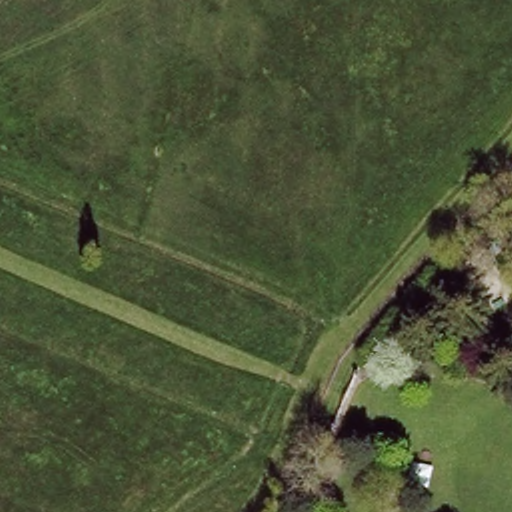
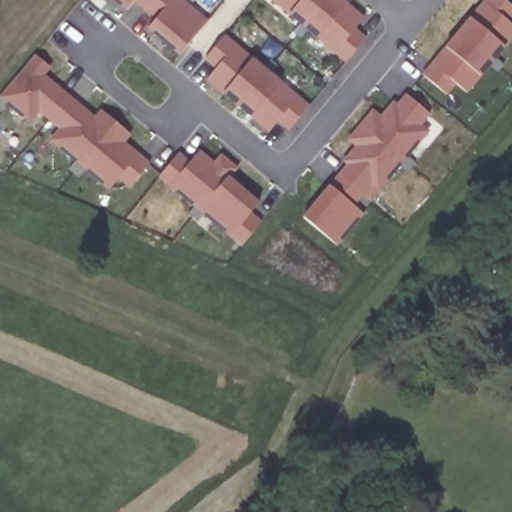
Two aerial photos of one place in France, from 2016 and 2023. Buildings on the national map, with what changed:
new [(177,58),(145,30),(155,19),(133,2),(124,13),(109,0),(184,0),(208,20),(177,58)]
new [(356,28),(367,37),(345,63),(315,39),(288,16),(269,0),(344,0),(347,3),(364,17),(356,28)]
new [(510,22),(512,24),(512,40),(505,48),(481,77),(466,93),(458,86),(447,97),(420,75),(443,48),(468,17),(483,0),(505,0),(512,6),(512,19),(510,22)]
new [(288,131),(276,122),(267,133),(251,119),(221,95),(205,81),(213,69),(203,60),(225,35),(251,57),(281,82),(310,105),(288,131)]
new [(117,179),(107,190),(83,170),(76,178),(67,169),(73,162),(48,140),(57,129),(40,115),(30,126),(3,103),(0,107),(0,95),(35,55),(51,68),(45,75),(94,116),(100,109),(131,135),(125,143),(150,163),(128,189),(117,179)]
new [(423,124),(424,125),(422,128),(428,132),(407,157),(415,163),(408,173),(399,166),(367,205),(360,200),(355,206),(365,214),(337,246),(302,217),(328,185),(344,165),(341,162),(353,146),(346,140),(372,109),(381,115),(393,101),(396,103),(404,93),(430,114),(423,124)]
new [(250,211),(262,221),(241,247),(203,216),(197,222),(186,215),(193,208),(157,178),(178,151),(191,160),(199,150),(214,162),(220,154),(238,168),(230,178),(259,201),(250,211)]
unchanged [(508,213),(511,212),(512,211),(512,219),(508,213)]

